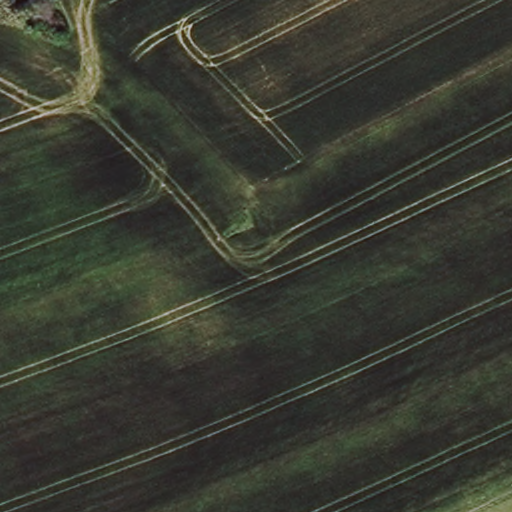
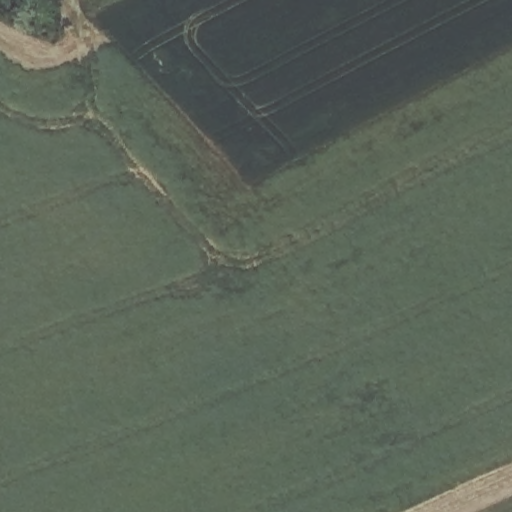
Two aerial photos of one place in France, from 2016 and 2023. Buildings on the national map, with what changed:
[]

